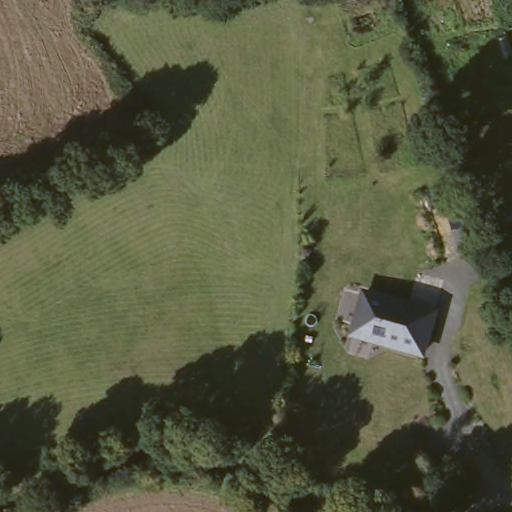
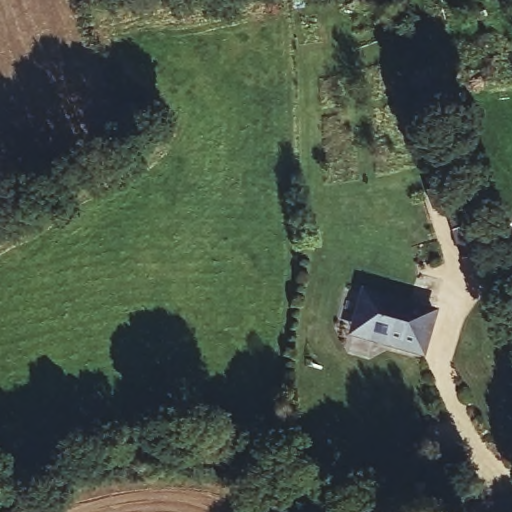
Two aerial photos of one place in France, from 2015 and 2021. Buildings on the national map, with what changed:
unchanged [(458,237),(441,241),(434,214),(451,210),(458,237)]
unchanged [(416,356),(373,340),(374,336),(348,326),(361,290),(430,315),(416,356)]

